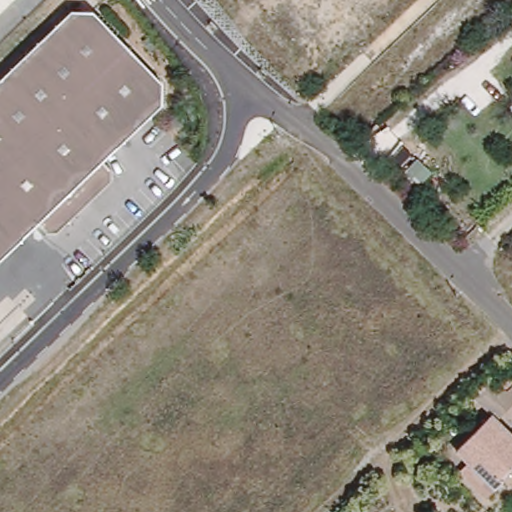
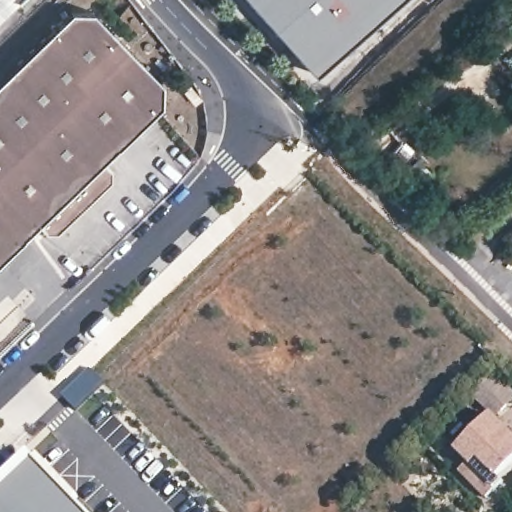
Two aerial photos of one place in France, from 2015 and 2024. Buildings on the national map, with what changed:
unchanged [(0,13),(0,0),(14,0),(0,13)]
new [(315,71),(248,0),(393,0),(315,71)]
unchanged [(96,12),(165,84),(163,107),(106,161),(41,222),(9,253),(0,243),(0,81),(71,12),(96,12)]
unchanged [(113,167),(115,170),(117,174),(116,177),(114,182),(61,231),(58,232),(55,232),(52,232),(48,230),(41,222),(106,161),(113,167)]
unchanged [(0,262),(0,243),(9,253),(0,262)]
unchanged [(494,413),(476,396),(506,366),(512,373),(512,407),(500,420),(494,413)]
unchanged [(461,468),(471,459),(459,447),(494,413),(500,420),(512,432),(512,460),(499,472),(504,477),(486,495),(461,468)]
new [(0,512),(0,503),(39,466),(83,512),(0,512)]

